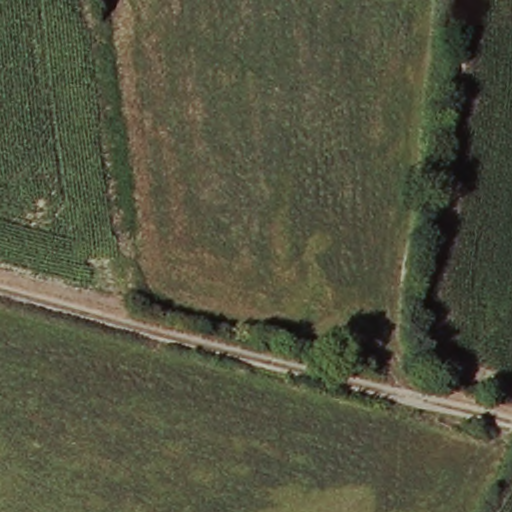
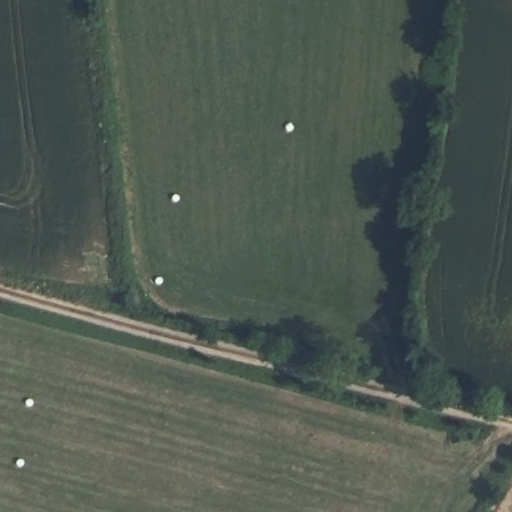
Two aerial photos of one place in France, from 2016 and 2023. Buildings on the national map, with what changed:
[]

